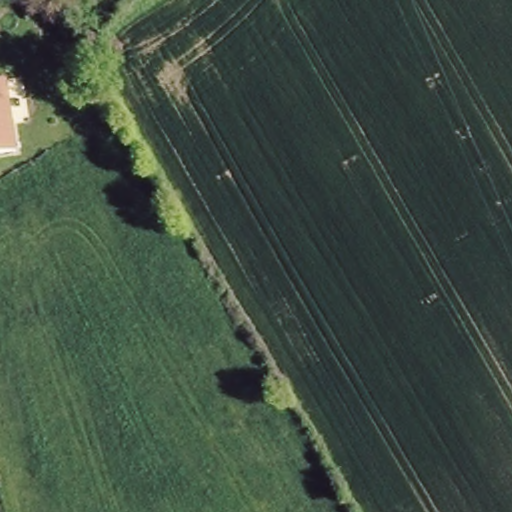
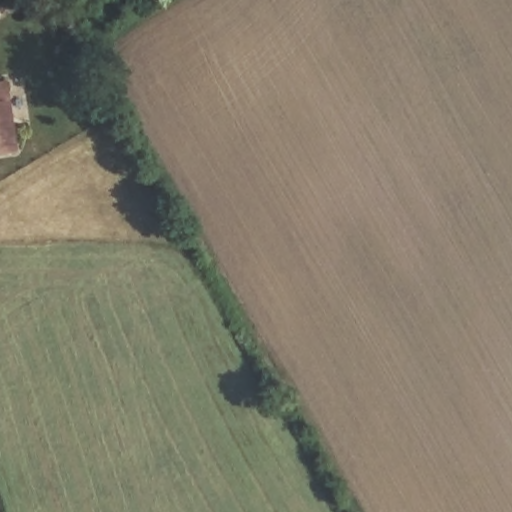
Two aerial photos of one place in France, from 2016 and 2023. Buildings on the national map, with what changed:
unchanged [(15,152),(0,155),(0,81),(5,80),(15,152)]

